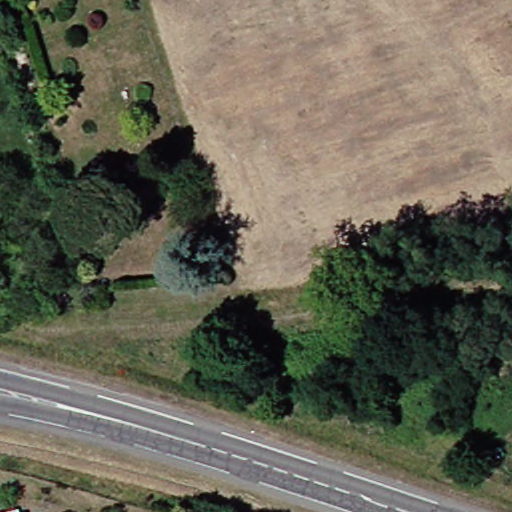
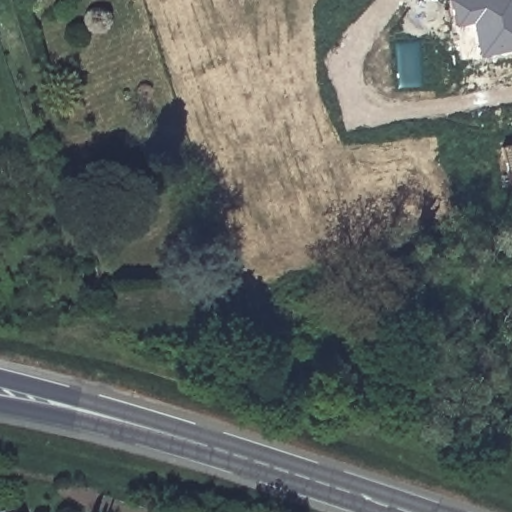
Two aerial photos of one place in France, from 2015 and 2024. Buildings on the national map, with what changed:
new [(455,25),(449,0),(512,0),(512,49),(478,56),(471,21),(455,25)]
new [(512,143),(512,189),(511,190),(501,146),(512,143)]

